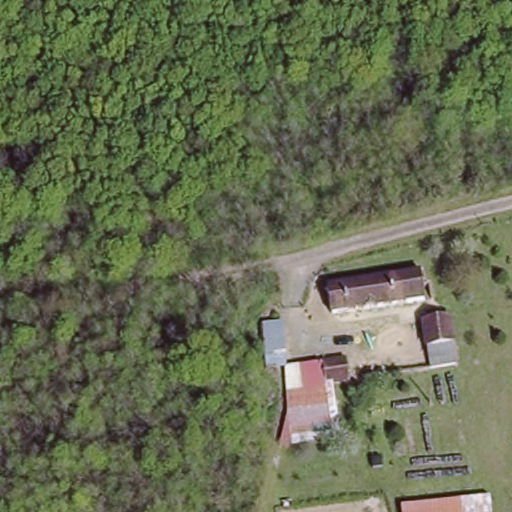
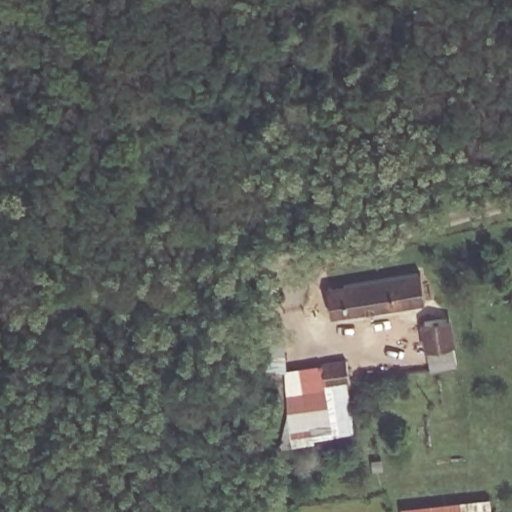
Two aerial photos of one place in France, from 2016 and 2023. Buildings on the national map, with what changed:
unchanged [(420,273),(423,295),(330,308),(327,287),(420,273)]
unchanged [(457,368),(429,371),(424,325),(450,322),(457,368)]
unchanged [(319,383),(325,382),(331,426),(292,435),(285,366),(317,361),(317,370),(319,383)]
unchanged [(347,366),(350,380),(340,381),(319,383),(317,370),(337,367),(347,366)]
unchanged [(491,497),(493,512),(401,512),(401,506),(491,497)]

